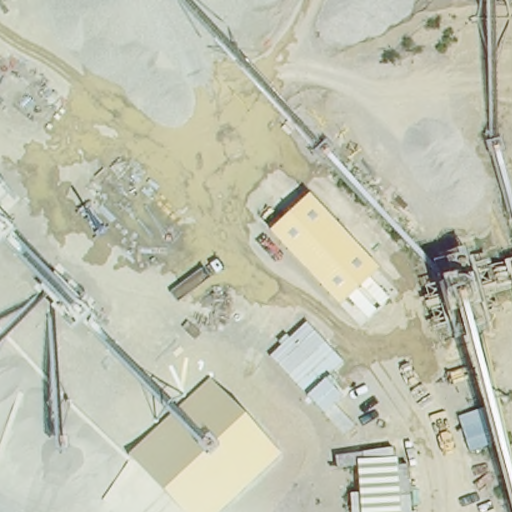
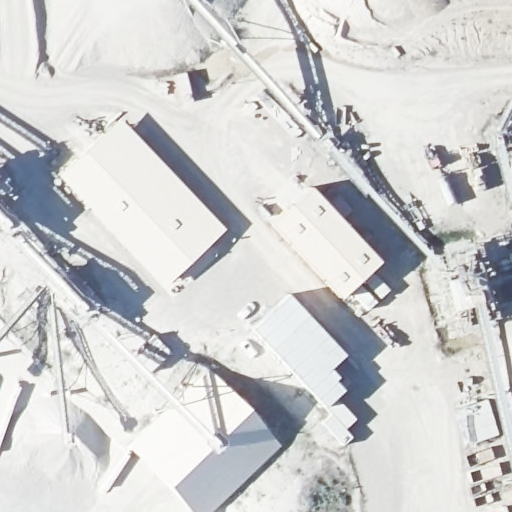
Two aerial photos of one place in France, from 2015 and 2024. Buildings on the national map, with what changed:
new [(119,117),(224,228),(162,285),(75,195),(57,175),(119,117)]
unchanged [(310,187),(380,262),(340,299),(270,224),(310,187)]
unchanged [(469,247),(491,325),(456,334),(434,257),(469,247)]
unchanged [(343,355),(327,373),(342,391),(335,398),(354,419),(344,430),(323,407),(307,388),(269,349),(306,315),(343,355)]
unchanged [(128,447),(209,371),(283,447),(212,512),(189,512),(128,447)]

